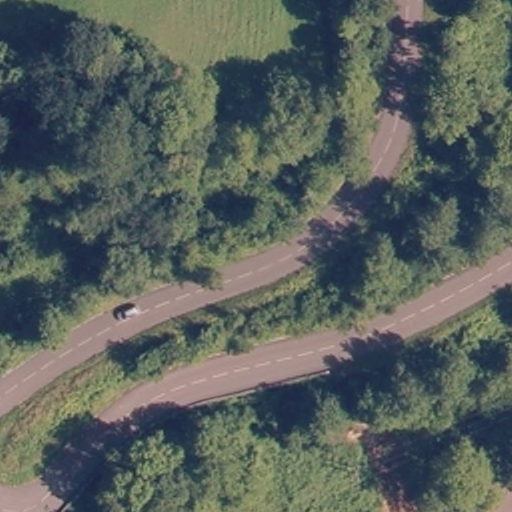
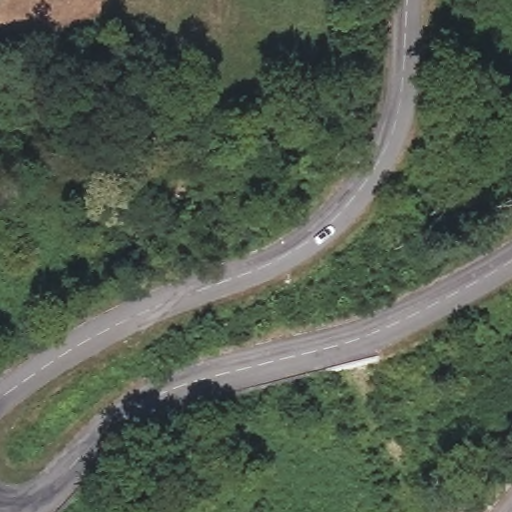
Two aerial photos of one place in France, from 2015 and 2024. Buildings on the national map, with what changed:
unchanged [(309,140),(292,166),(265,151),(283,126),(309,140)]
unchanged [(216,454),(197,474),(166,449),(187,428),(216,454)]

